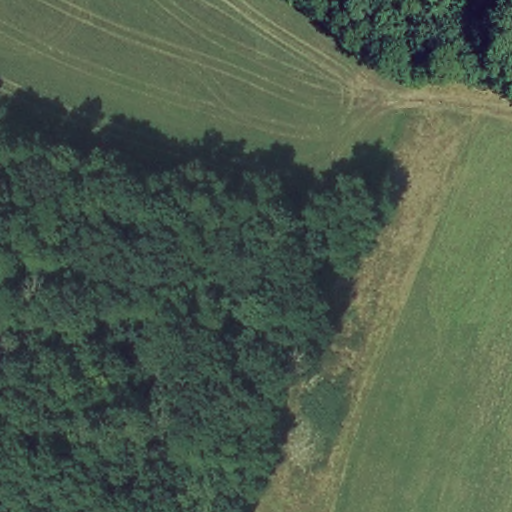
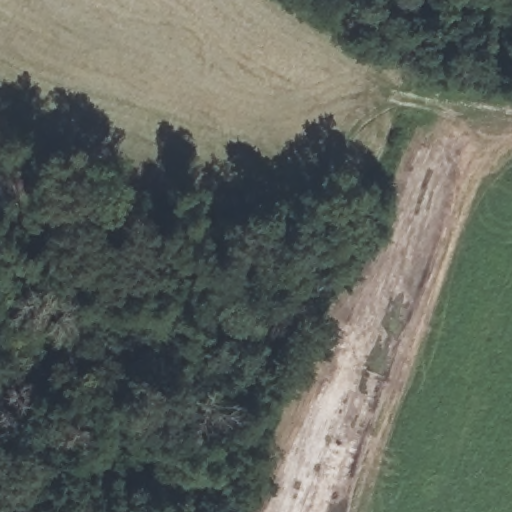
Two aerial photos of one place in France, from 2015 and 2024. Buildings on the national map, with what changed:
unchanged [(481,51),(471,81),(414,68),(422,34),(481,51)]

